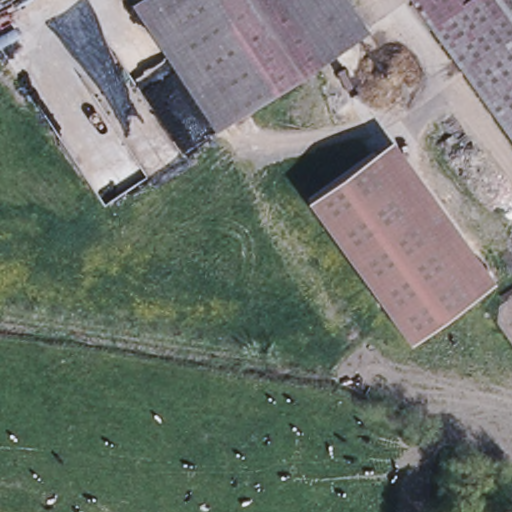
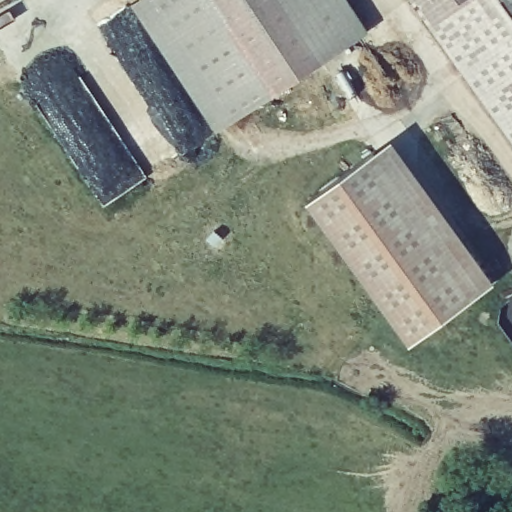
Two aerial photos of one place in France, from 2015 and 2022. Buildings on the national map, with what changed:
unchanged [(208,134),(142,33),(124,5),(131,0),(344,0),(364,31),(208,134)]
unchanged [(512,0),(512,140),(417,0),(512,0)]
unchanged [(305,200),(390,140),(491,282),(407,346),(305,200)]

